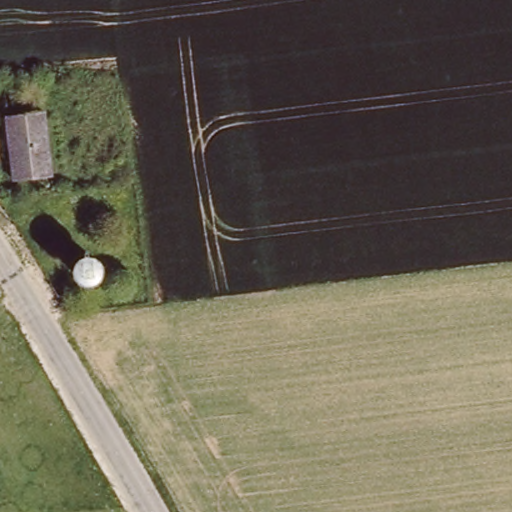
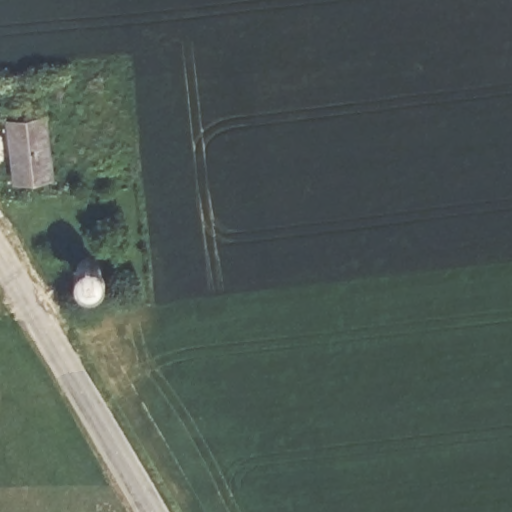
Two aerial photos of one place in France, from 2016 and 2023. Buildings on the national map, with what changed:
unchanged [(45,112),(52,174),(12,178),(5,115),(45,112)]

